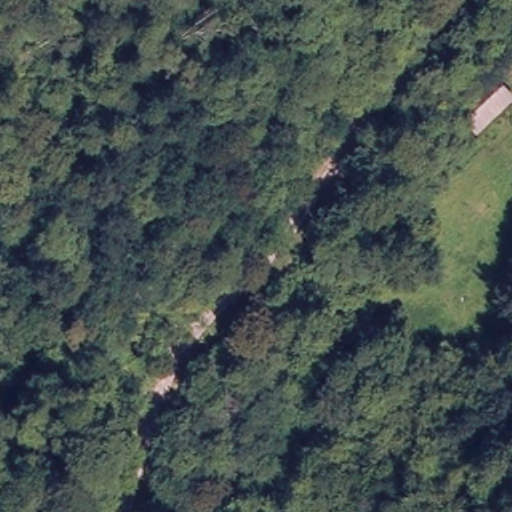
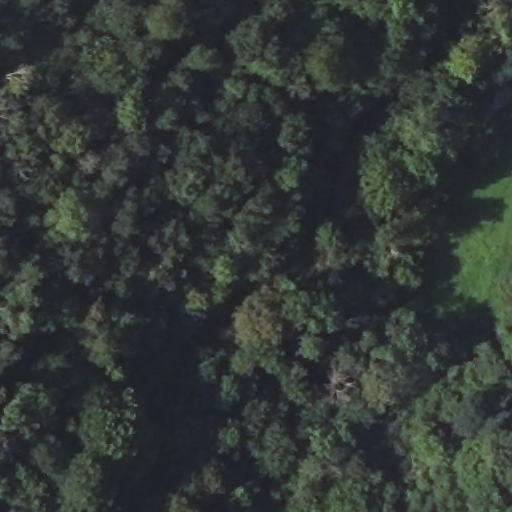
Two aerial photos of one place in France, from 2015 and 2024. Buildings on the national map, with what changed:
unchanged [(512,96),(512,104),(479,129),(459,106),(497,76),(512,96)]

